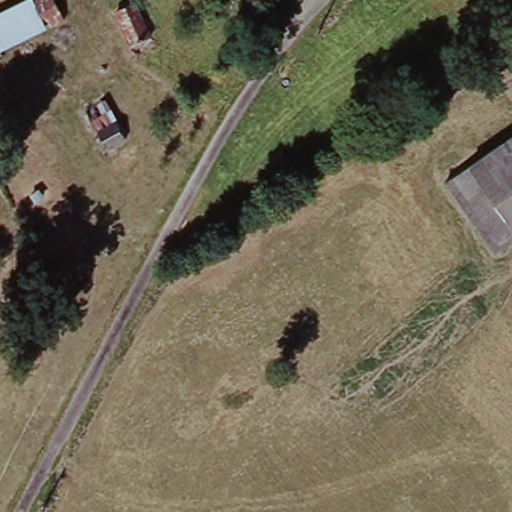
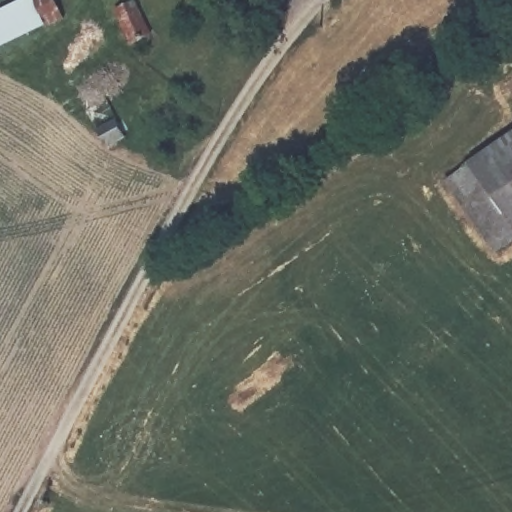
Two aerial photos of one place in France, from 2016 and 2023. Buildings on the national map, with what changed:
unchanged [(0,58),(0,9),(21,0),(56,0),(65,22),(0,58)]
unchanged [(120,11),(140,1),(160,39),(139,49),(120,11)]
unchanged [(123,131),(102,141),(101,140),(95,124),(116,115),(123,131)]
unchanged [(512,236),(501,243),(454,171),(512,133),(512,236)]

